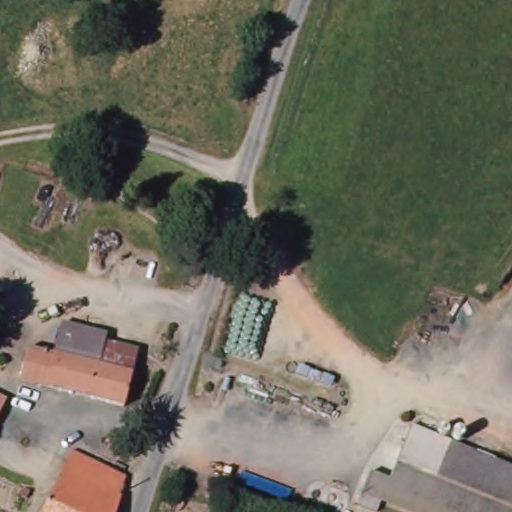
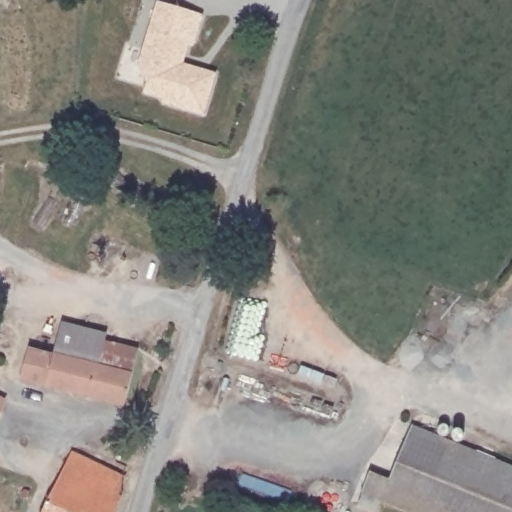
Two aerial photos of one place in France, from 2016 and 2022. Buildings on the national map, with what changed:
new [(216,74),(203,115),(162,102),(163,99),(144,93),(146,86),(150,70),(138,66),(157,2),(202,16),(193,47),(187,50),(185,55),(183,64),(216,74)]
unchanged [(34,355),(55,360),(63,328),(108,339),(106,348),(140,356),(134,379),(125,414),(21,388),(34,355)]
unchanged [(0,421),(0,402),(7,406),(0,421)]
unchanged [(400,512),(361,497),(371,473),(391,481),(412,427),(512,467),(512,512),(400,512)]
unchanged [(44,512),(46,506),(72,453),(125,478),(119,496),(122,498),(117,512),(44,512)]

